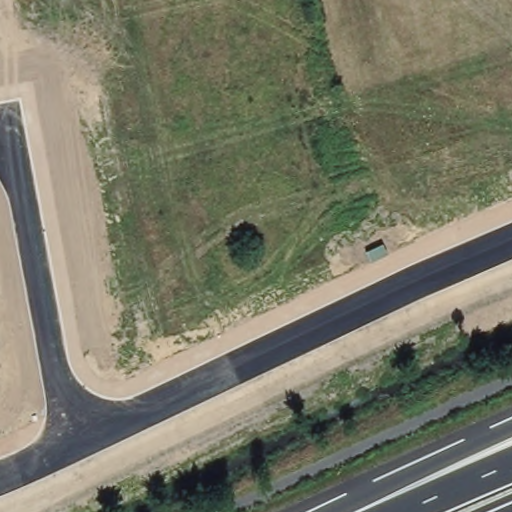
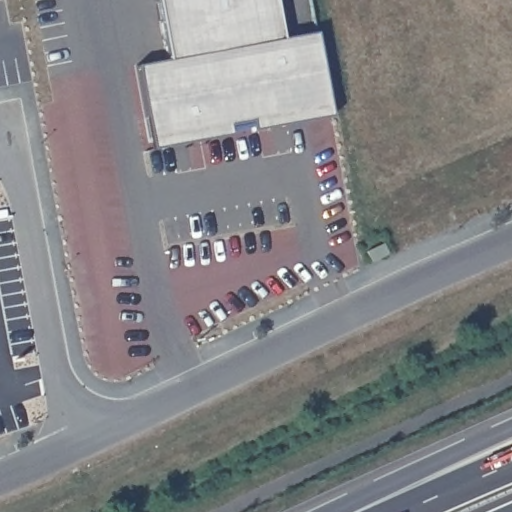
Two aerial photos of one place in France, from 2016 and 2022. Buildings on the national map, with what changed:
new [(149,142),(135,67),(167,61),(156,0),(274,0),(281,40),(316,33),(330,108),(332,117),(269,129),(252,132),(204,141),(188,144),(150,151),(149,142)]

